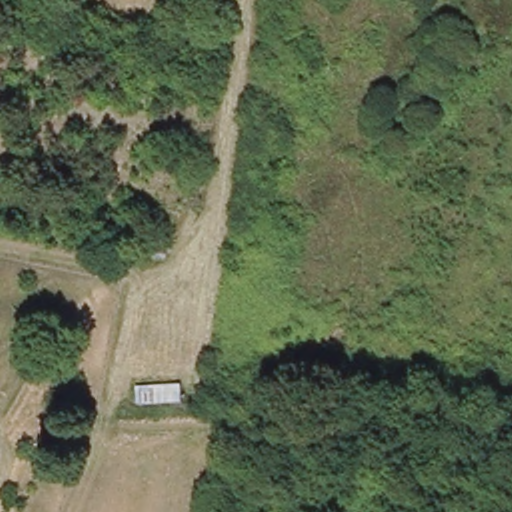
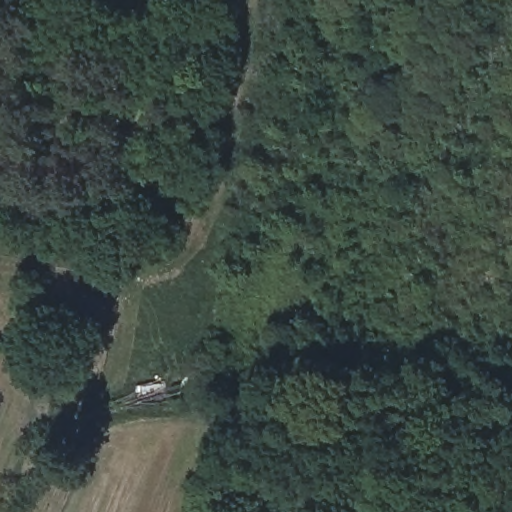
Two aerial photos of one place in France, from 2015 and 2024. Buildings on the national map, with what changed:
unchanged [(136,405),(134,386),(177,380),(182,402),(136,405)]

